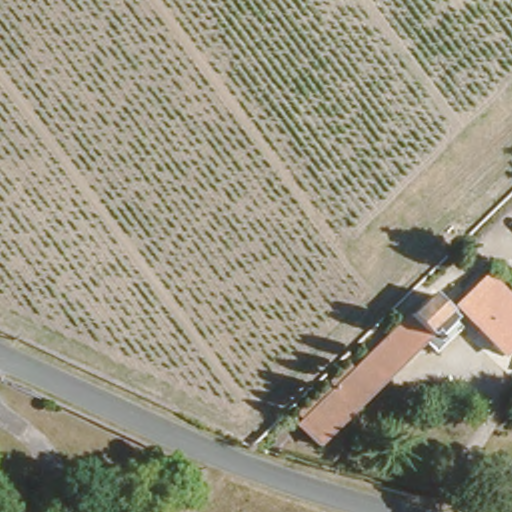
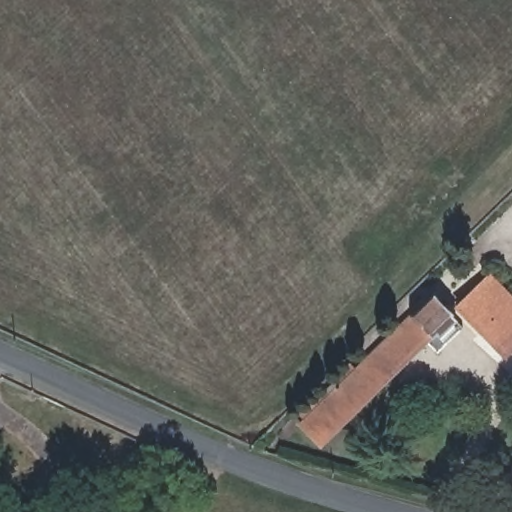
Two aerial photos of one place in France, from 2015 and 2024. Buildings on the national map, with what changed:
unchanged [(452,293),(485,262),(512,289),(512,336),(502,345),(452,293)]
unchanged [(299,410),(303,405),(301,402),(346,358),(351,361),(430,287),(451,309),(445,315),(454,325),(440,338),(430,328),(320,433),(299,410)]

